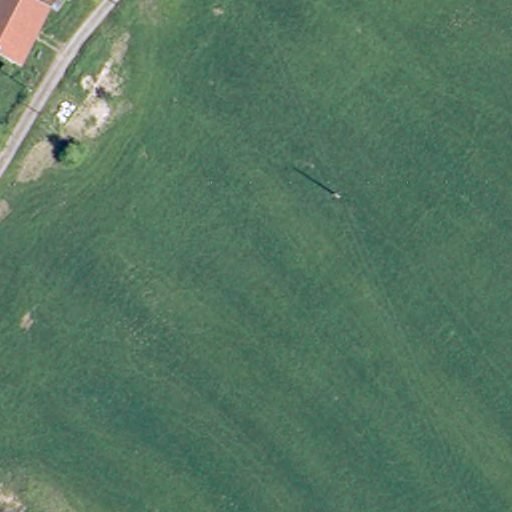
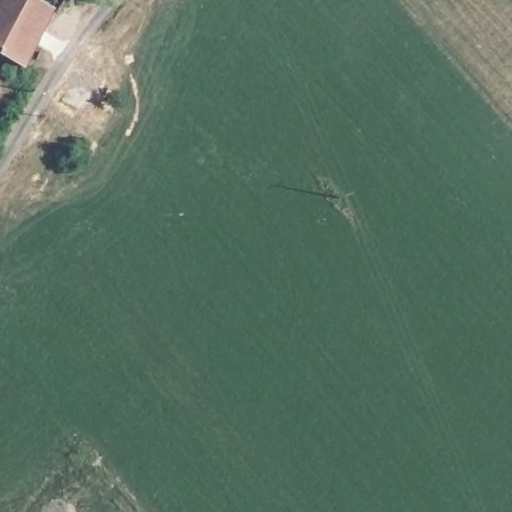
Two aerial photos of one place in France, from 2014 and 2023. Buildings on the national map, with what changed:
unchanged [(0,0),(71,0),(64,14),(57,10),(29,68),(0,54),(0,1),(0,0)]

